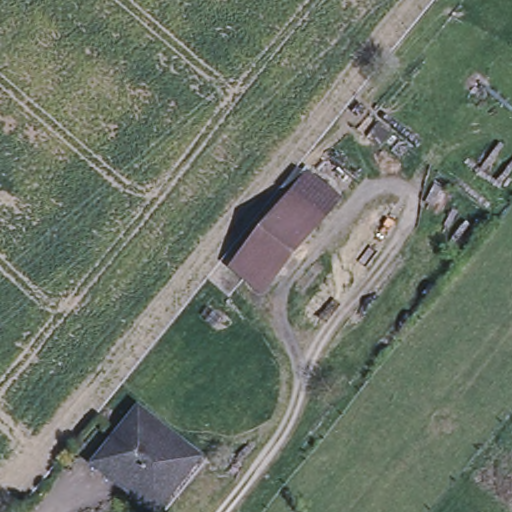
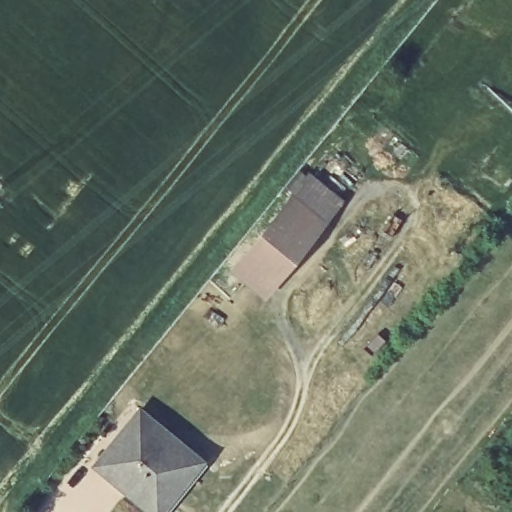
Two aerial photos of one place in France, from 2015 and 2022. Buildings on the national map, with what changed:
unchanged [(236,270),(294,200),(309,180),(338,204),(323,223),(266,293),(236,270)]
unchanged [(141,411),(195,455),(168,488),(176,495),(162,512),(151,512),(119,486),(95,466),(98,463),(141,411)]

